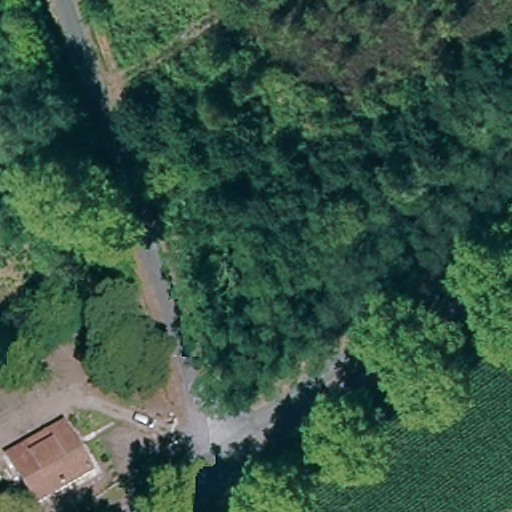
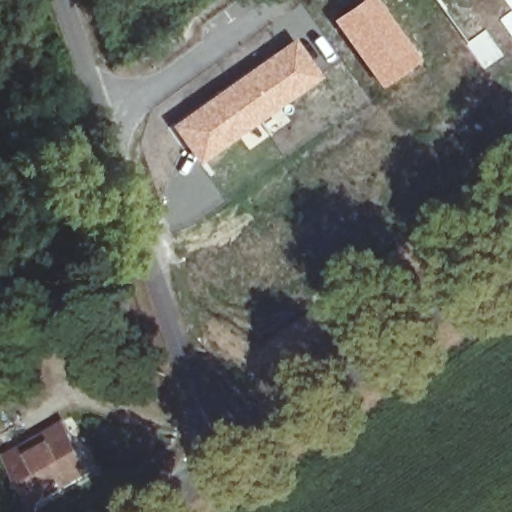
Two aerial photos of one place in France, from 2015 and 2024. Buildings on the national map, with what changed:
new [(359,0),(377,0),(418,59),(379,88),(331,20),(359,0)]
new [(295,38),(322,77),(268,118),(198,164),(169,125),(295,38)]
unchanged [(91,474),(37,507),(9,461),(29,449),(46,439),(63,428),(91,474)]

